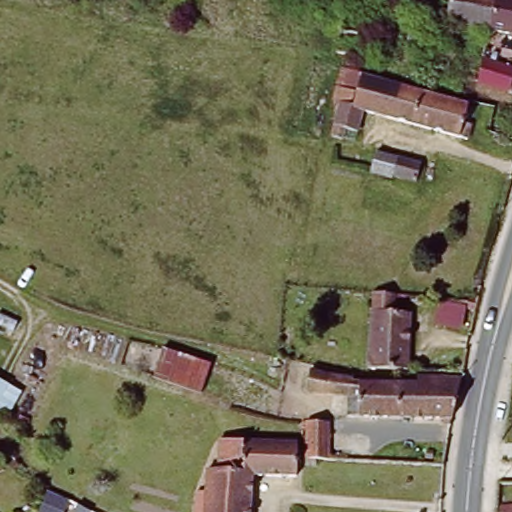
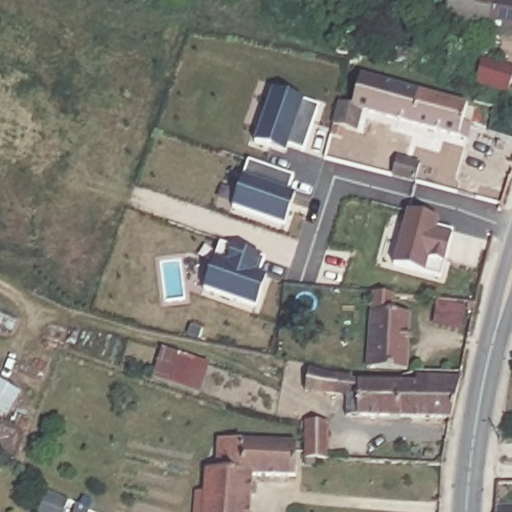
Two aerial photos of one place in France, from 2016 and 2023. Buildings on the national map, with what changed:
unchanged [(447,0),(512,0),(512,43),(443,31),(447,0)]
unchanged [(478,82),(484,58),(512,67),(512,83),(509,92),(478,82)]
unchanged [(331,101),(344,105),(352,75),(465,108),(461,124),(467,126),(463,141),(354,110),(348,131),(336,127),(333,137),(322,134),(331,101)]
new [(306,152),(290,146),(288,153),(257,144),(275,90),(306,101),(322,107),(306,152)]
new [(293,192),(298,194),(286,226),(235,207),(242,175),(248,178),(250,161),(297,177),(293,192)]
unchanged [(419,188),(395,181),(400,162),(424,169),(419,188)]
new [(428,274),(395,266),(408,210),(441,219),(440,226),(455,230),(444,280),(428,274)]
new [(266,276),(269,277),(260,307),(206,290),(216,258),(222,242),(232,245),(264,255),(269,257),(266,276)]
unchanged [(366,370),(369,295),(391,296),(391,316),(407,317),(405,372),(393,371),(366,370)]
unchanged [(201,398),(149,385),(161,346),(210,365),(201,398)]
unchanged [(447,423),(342,420),(342,400),(301,395),(303,375),(346,380),(347,385),(412,387),(413,380),(457,383),(447,423)]
unchanged [(23,395),(9,416),(0,412),(0,382),(23,395)]
unchanged [(330,464),(307,463),(307,447),(307,425),(329,427),(330,464)]
unchanged [(255,512),(200,512),(202,491),(209,492),(213,469),(222,470),(225,441),(302,442),(302,473),(257,474),(255,512)]
unchanged [(512,510),(512,512),(491,512),(492,510),(512,510)]

